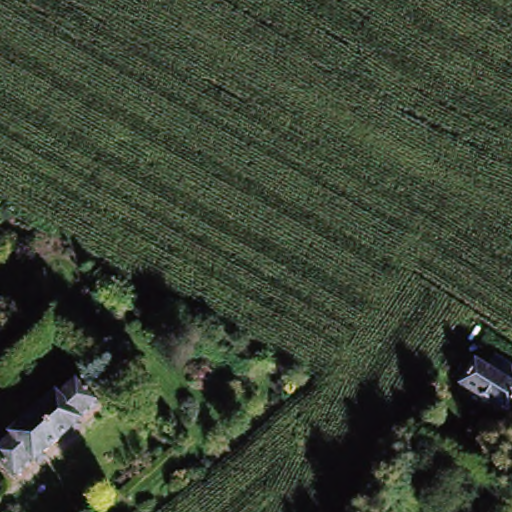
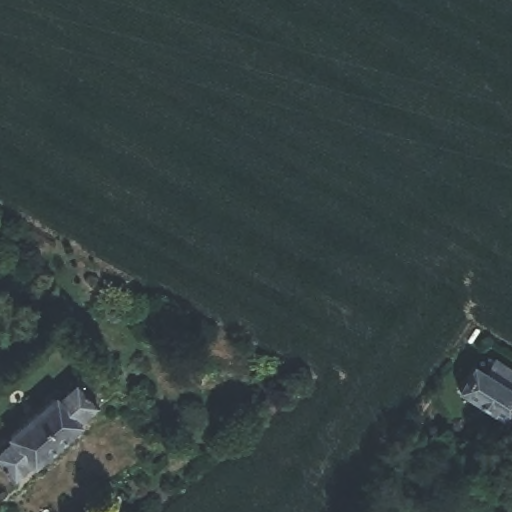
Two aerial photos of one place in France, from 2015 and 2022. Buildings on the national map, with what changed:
unchanged [(95,369),(107,357),(117,367),(105,377),(95,369)]
unchanged [(485,386),(495,373),(508,383),(500,395),(511,405),(498,422),(458,392),(472,376),(485,386)]
unchanged [(100,409),(17,489),(0,472),(0,453),(73,382),(100,409)]

